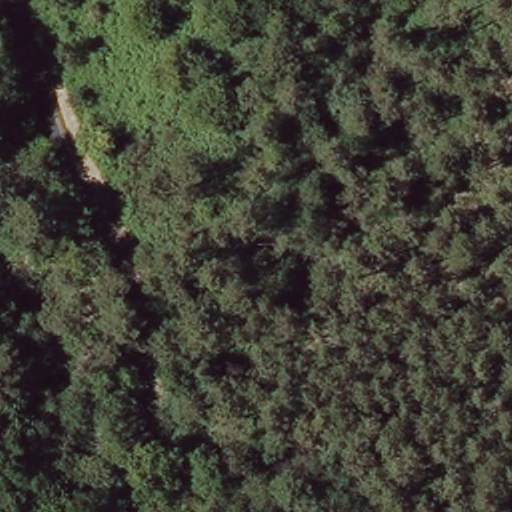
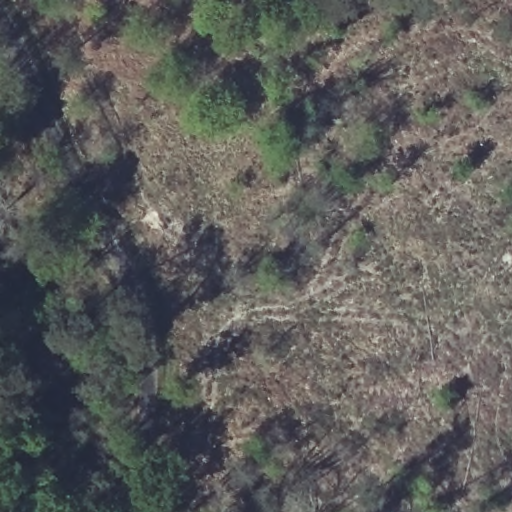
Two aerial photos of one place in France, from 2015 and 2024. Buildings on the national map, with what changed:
[]

